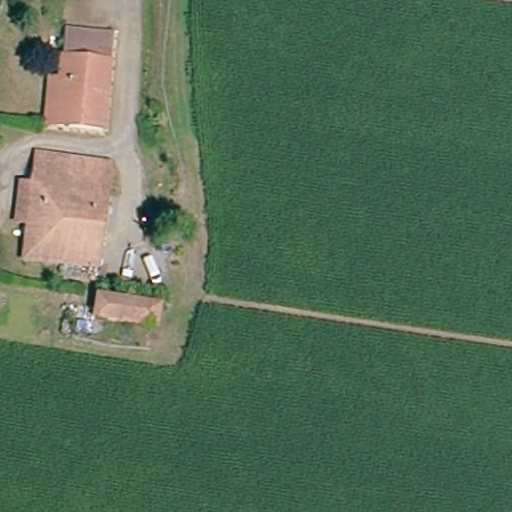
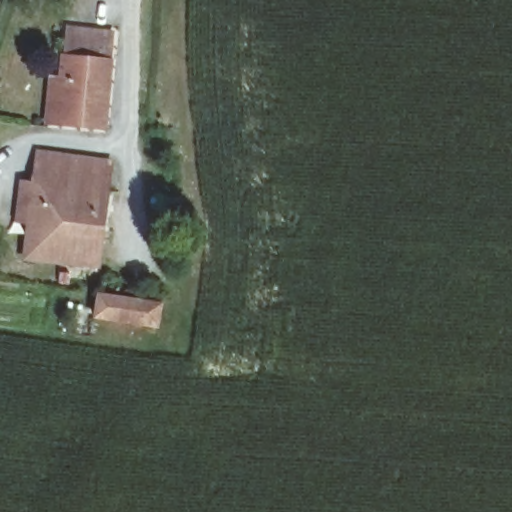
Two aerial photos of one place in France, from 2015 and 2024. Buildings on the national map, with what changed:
unchanged [(52,75),(63,76),(66,46),(68,27),(111,30),(110,49),(103,120),(103,126),(85,124),(76,123),(48,119),(52,75)]
unchanged [(28,220),(17,219),(22,183),(33,184),(38,155),(82,161),(106,164),(93,266),(23,256),(28,220)]
unchanged [(153,323),(130,320),(93,317),(96,290),(156,300),(153,323)]

